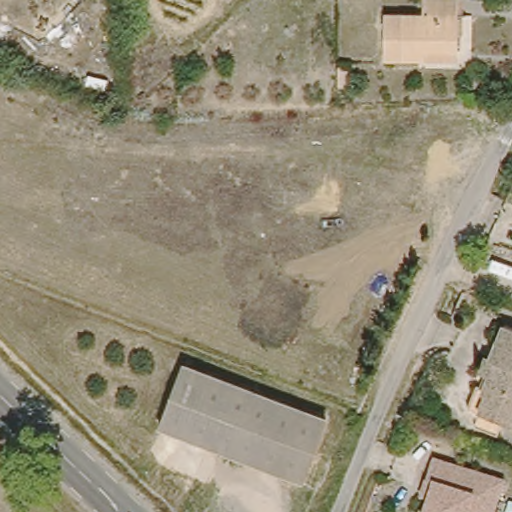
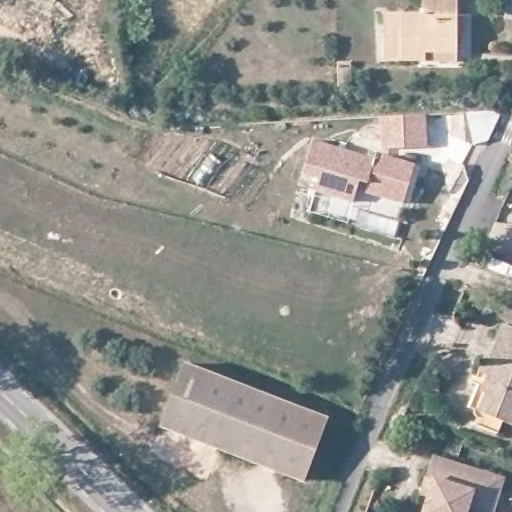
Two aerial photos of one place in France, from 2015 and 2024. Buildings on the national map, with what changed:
unchanged [(390,61),(390,12),(426,12),(427,0),(465,0),(462,60),(390,61)]
new [(428,146),(381,150),(380,117),(424,116),(428,146)]
new [(405,203),(366,193),(367,186),(359,183),(353,203),(315,193),(318,181),(303,176),(312,139),(382,161),(382,155),(415,162),(405,203)]
unchanged [(480,425),(485,414),(475,409),(479,393),(485,394),(507,327),(512,329),(512,426),(510,426),(506,437),(480,425)]
unchanged [(167,424),(187,361),(327,414),(303,476),(167,424)]
unchanged [(498,512),(493,512),(473,506),(471,512),(435,512),(440,491),(433,489),(438,475),(443,456),(510,477),(498,512)]

